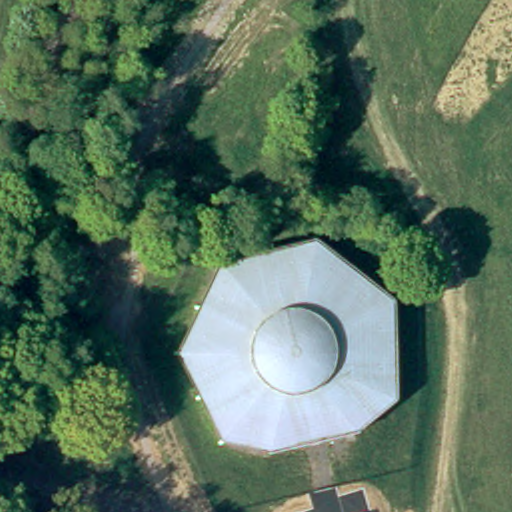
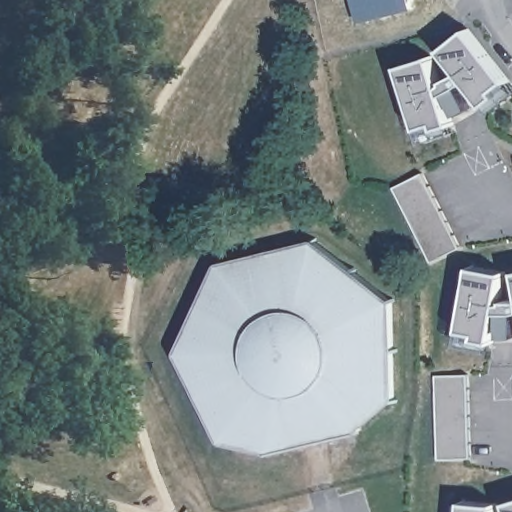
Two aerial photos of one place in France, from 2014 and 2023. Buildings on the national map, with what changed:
new [(486,101),(469,81),(461,87),(473,108),(461,114),(451,93),(445,95),(453,125),(456,131),(425,140),(421,126),(401,66),(432,56),(441,86),(446,84),(446,79),(462,73),(442,49),(469,29),(510,80),(512,83),(512,97),(494,111),(486,101)]
new [(460,247),(431,262),(393,188),(422,173),(460,247)]
new [(461,330),(472,266),(506,272),(498,302),(506,303),(507,299),(512,299),(512,337),(503,337),(504,312),(497,312),(492,342),(491,348),(459,342),(461,330)]
new [(470,458),(438,459),(436,375),(468,374),(470,458)]
new [(464,500),(496,504),(495,512),(462,512),(464,500)]
new [(508,501),(512,500),(512,512),(511,512),(508,501)]

